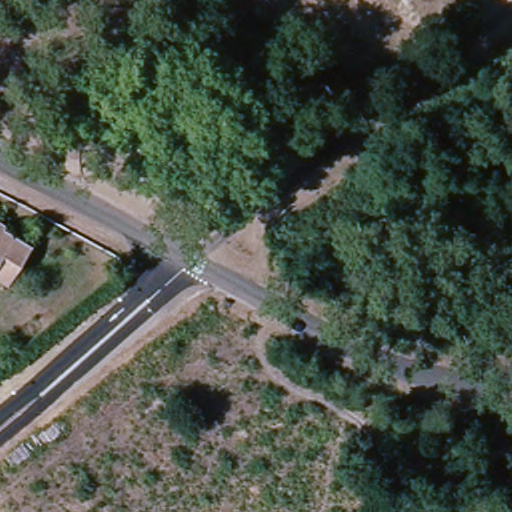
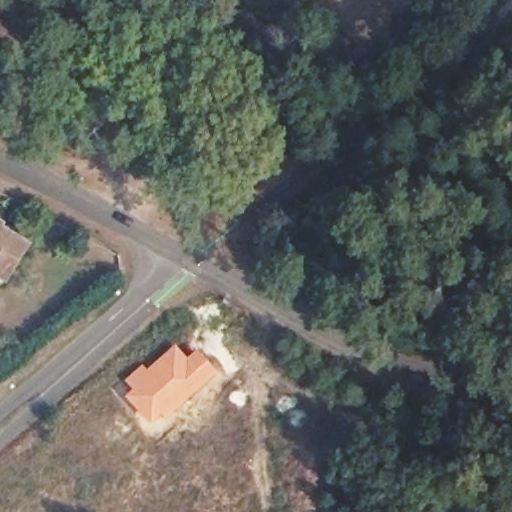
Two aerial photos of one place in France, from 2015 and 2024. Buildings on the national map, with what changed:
unchanged [(29,247),(18,266),(10,277),(6,283),(0,280),(0,228),(29,247)]
new [(142,363),(146,368),(174,344),(186,357),(197,348),(217,372),(163,417),(161,415),(150,424),(124,395),(131,388),(124,380),(142,363)]

